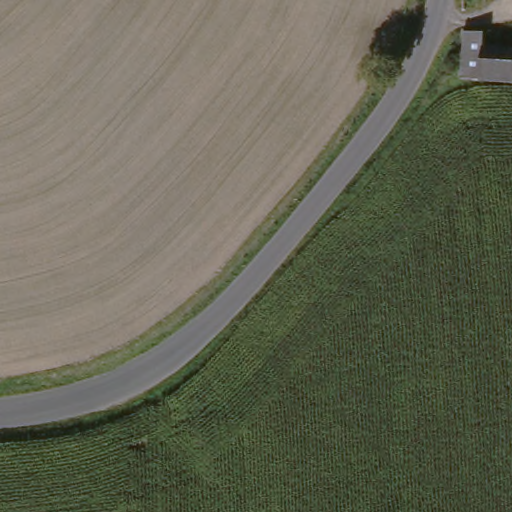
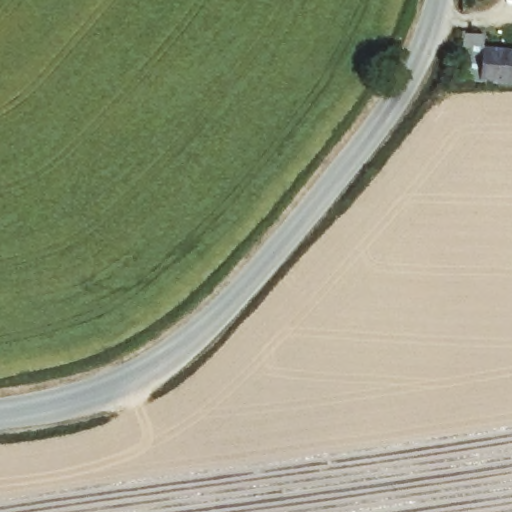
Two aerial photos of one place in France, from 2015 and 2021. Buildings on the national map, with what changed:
unchanged [(479,71),(459,68),(462,25),(468,26),(485,28),(479,71)]
unchanged [(488,73),(494,43),(512,45),(512,76),(488,73)]

